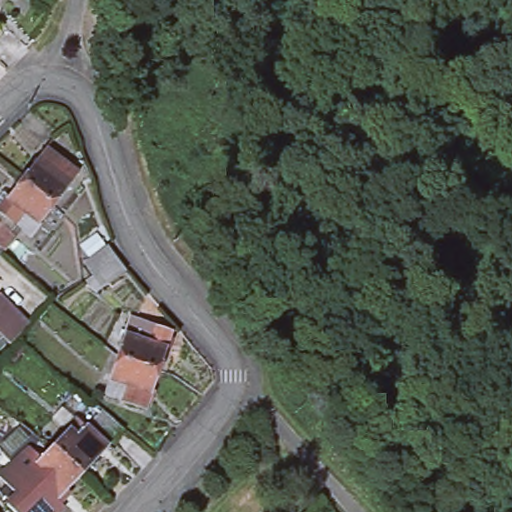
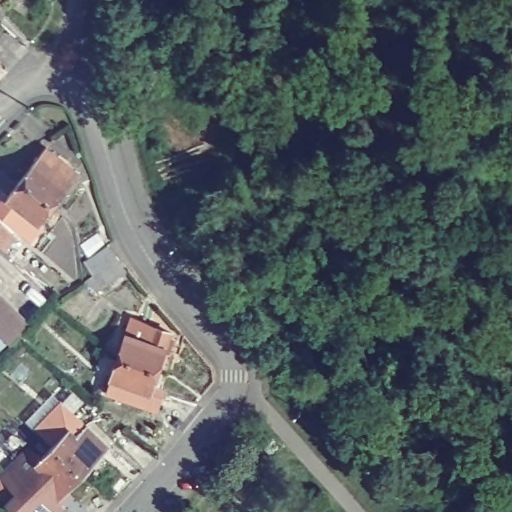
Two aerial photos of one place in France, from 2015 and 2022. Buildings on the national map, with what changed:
unchanged [(42,142),(75,167),(51,199),(17,174),(42,142)]
unchanged [(0,211),(0,198),(17,174),(51,199),(27,232),(0,211)]
unchanged [(1,244),(0,244),(0,221),(12,232),(1,244)]
unchanged [(90,287),(77,278),(87,271),(77,258),(101,241),(112,254),(120,265),(90,287)]
unchanged [(10,338),(0,327),(0,303),(22,328),(10,338)]
unchanged [(112,357),(127,317),(136,319),(142,325),(166,333),(152,372),(112,357)]
unchanged [(152,372),(138,408),(117,401),(123,384),(105,377),(112,357),(152,372)]
unchanged [(124,430),(114,440),(93,420),(103,411),(124,430)]
unchanged [(106,447),(81,473),(51,444),(66,429),(77,419),(84,426),(106,447)]
unchanged [(62,504),(55,512),(13,512),(5,504),(15,494),(0,480),(0,473),(22,449),(29,450),(37,458),(51,444),(81,473),(56,499),(62,504)]

